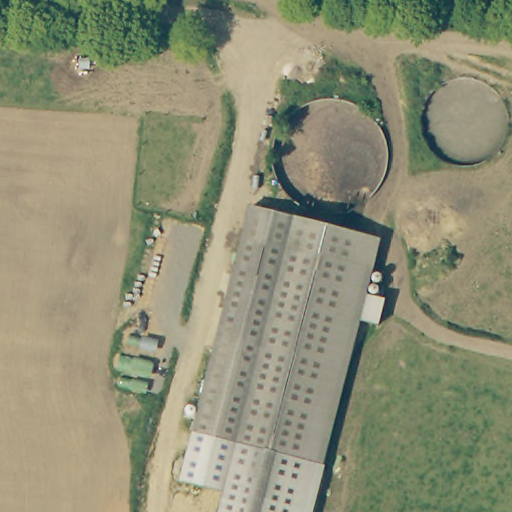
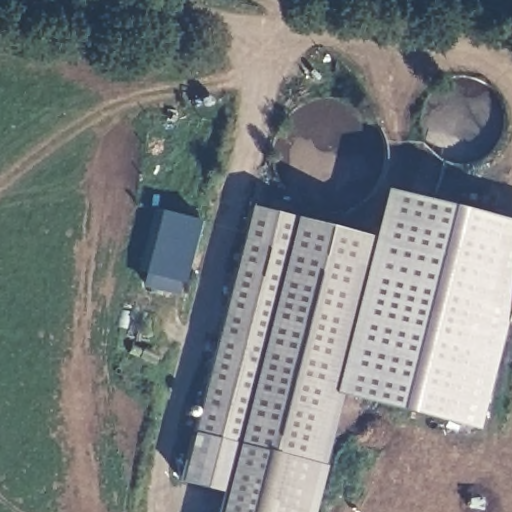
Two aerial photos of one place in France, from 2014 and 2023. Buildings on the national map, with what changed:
new [(334,393),(372,237),(383,188),(512,221),(512,293),(477,428),(334,393)]
new [(178,295),(142,284),(160,209),(200,219),(178,295)]
unchanged [(205,438),(260,210),(372,237),(317,464),(205,438)]
unchanged [(313,512),(218,512),(222,492),(180,482),(190,434),(205,438),(317,464),(323,466),(313,512)]

